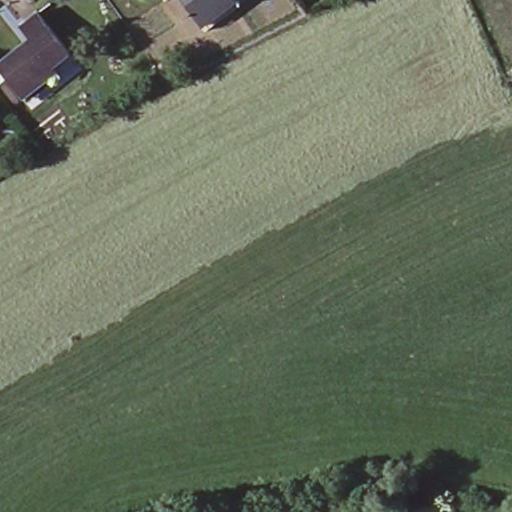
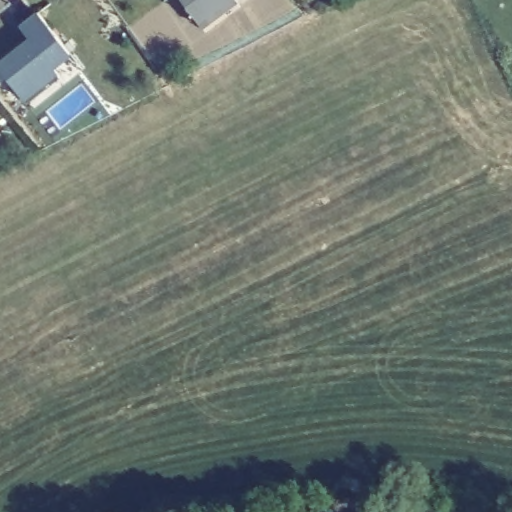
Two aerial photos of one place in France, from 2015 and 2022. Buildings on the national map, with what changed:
unchanged [(218,5),(222,11),(205,26),(182,0),(224,0),(218,5)]
unchanged [(39,80),(44,87),(28,100),(0,66),(0,63),(29,40),(19,28),(40,11),(73,52),(39,80)]

